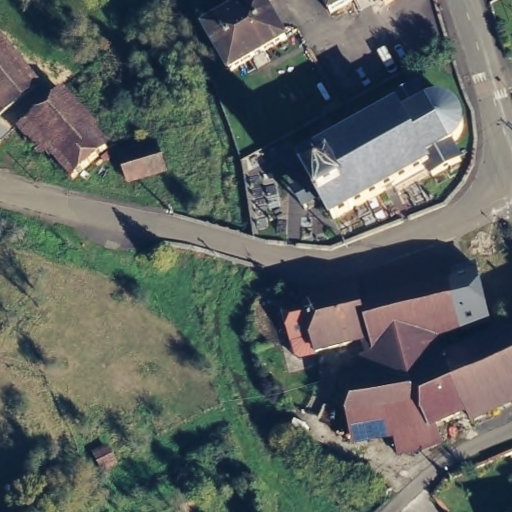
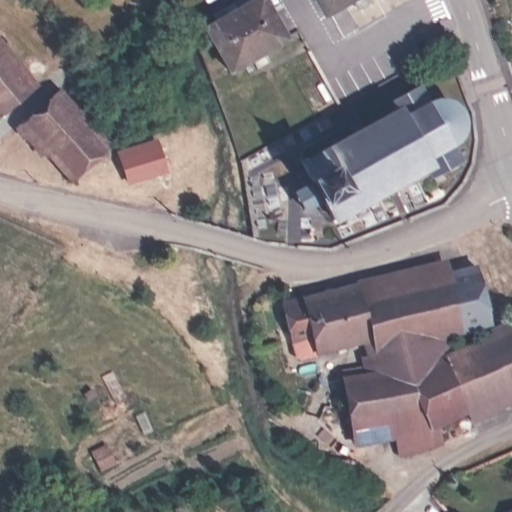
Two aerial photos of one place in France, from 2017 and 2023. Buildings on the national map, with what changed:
unchanged [(286,40),(231,73),(204,30),(226,17),(223,9),(229,5),(235,3),(239,10),(257,0),(262,0),(286,40)]
unchanged [(319,0),(364,0),(330,20),(319,0)]
unchanged [(43,85),(3,117),(0,114),(0,28),(43,85)]
unchanged [(108,139),(68,170),(21,113),(47,91),(58,82),(108,139)]
unchanged [(461,154),(432,170),(427,163),(329,215),(319,197),(302,207),(292,188),(308,178),(299,160),(359,126),(393,107),(389,98),(418,82),(429,99),(435,95),(444,95),(453,99),(459,104),(462,112),(463,122),(460,129),(452,137),(461,154)]
unchanged [(121,156),(159,143),(168,168),(131,182),(121,156)]
unchanged [(512,311),(512,406),(469,431),(462,414),(432,430),(443,446),(397,459),(395,436),(354,438),(342,376),(366,367),(356,344),(312,354),(306,338),(289,346),(276,301),(434,255),(438,267),(466,259),(492,322),(512,311)]
unchanged [(512,503),(512,512),(505,512),(504,505),(512,503)]

